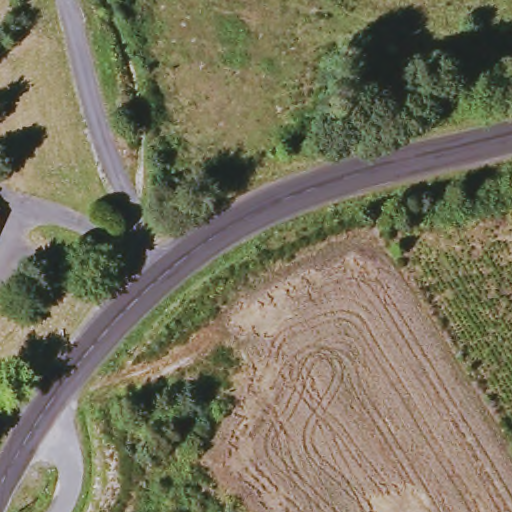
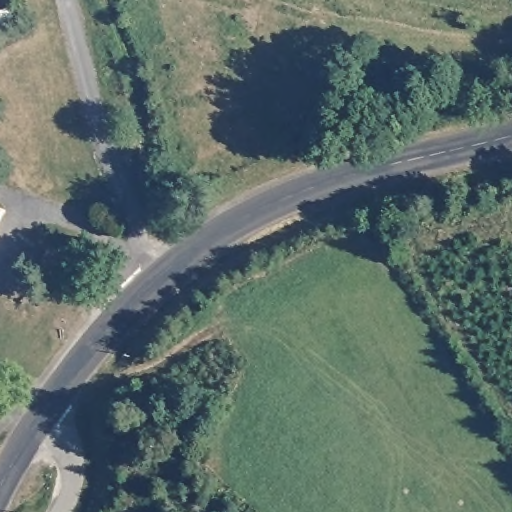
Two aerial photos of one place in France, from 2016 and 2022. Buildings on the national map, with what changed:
unchanged [(67,248),(59,263),(48,258),(56,242),(67,248)]

